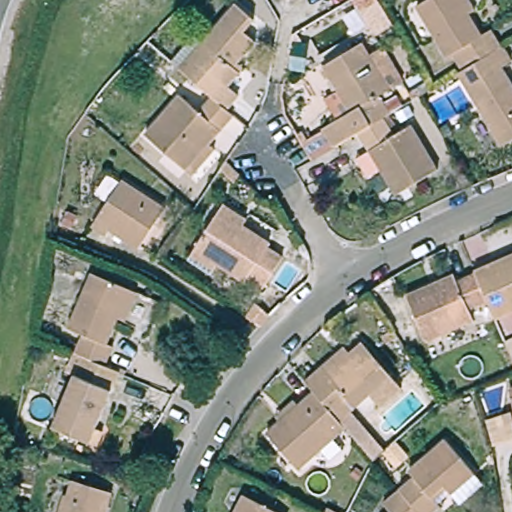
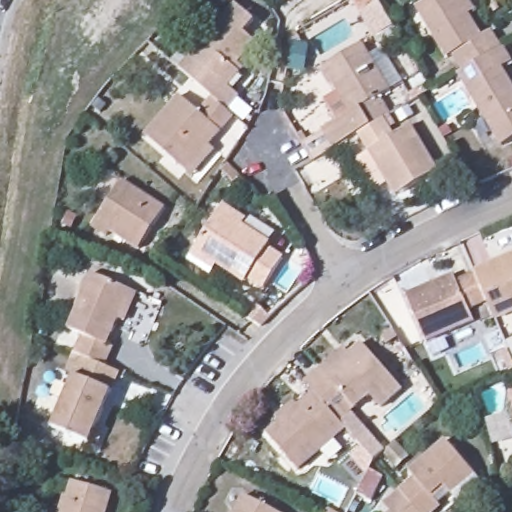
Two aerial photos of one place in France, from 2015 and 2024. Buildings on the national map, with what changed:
unchanged [(230,0),(234,0),(249,15),(239,28),(250,38),(234,59),(239,64),(224,82),(235,92),(223,105),(209,94),(177,65),(230,0)]
unchanged [(381,3),(375,7),(369,0),(379,0),(381,3)]
unchanged [(445,54),(440,57),(408,6),(417,0),(459,0),(466,10),(460,14),(474,37),(481,32),(492,49),(455,71),(445,54)]
unchanged [(355,113),(342,91),(344,90),(330,65),(367,44),(379,62),(392,54),(409,82),(395,90),(384,96),(395,116),(391,118),(365,134),(339,149),(327,129),(355,113)]
unchanged [(492,68),(512,101),(512,133),(494,146),(449,75),(455,71),(492,49),(495,47),(502,61),(492,68)]
unchanged [(190,171),(183,165),(141,131),(176,91),(197,106),(209,94),(223,105),(228,110),(205,138),(212,143),(190,171)]
unchanged [(369,153),(375,150),(365,134),(391,118),(400,134),(417,124),(445,169),(402,195),(387,170),(381,174),(369,153)]
unchanged [(132,247),(102,227),(98,233),(85,225),(114,180),(155,208),(132,247)]
unchanged [(247,220),(243,225),(271,243),(268,246),(284,258),(264,287),(249,276),(246,281),(219,262),(211,274),(189,259),(224,205),(247,220)]
unchanged [(492,319),(484,301),(472,273),(512,254),(512,310),(492,319)]
unchanged [(65,326),(89,273),(125,288),(133,292),(121,320),(114,317),(104,344),(109,346),(102,366),(80,357),(72,353),(81,334),(65,326)]
unchanged [(484,301),(465,309),(469,321),(423,342),(402,296),(451,275),(454,281),(472,273),(484,301)]
unchanged [(370,455),(342,423),(310,387),(302,377),(318,363),(323,369),(358,337),(397,383),(376,401),(365,389),(350,402),(345,396),(340,399),(380,446),(370,455)]
unchanged [(93,445),(86,442),(48,426),(80,357),(102,366),(118,373),(94,426),(100,427),(93,445)]
unchanged [(294,462),(263,429),(276,417),(271,410),(290,395),(294,401),(310,387),(342,423),(294,462)]
unchanged [(406,471),(442,440),(477,482),(456,502),(440,485),(426,497),(436,507),(430,512),(415,512),(396,490),(411,477),(406,471)]
unchanged [(109,489),(102,512),(55,512),(67,476),(109,489)]
unchanged [(380,504),(396,490),(415,512),(386,512),(387,512),(380,504)]
unchanged [(278,512),(237,512),(246,495),(278,512)]

